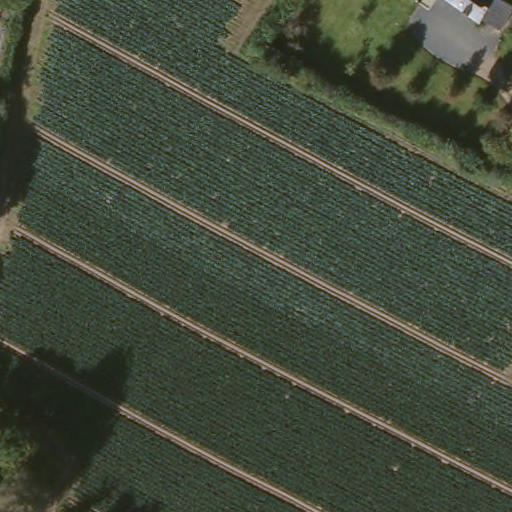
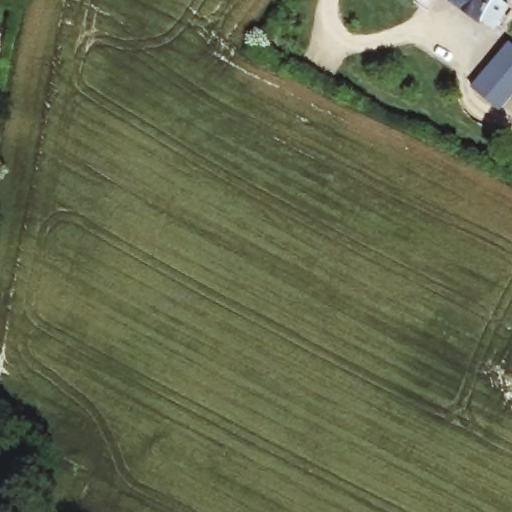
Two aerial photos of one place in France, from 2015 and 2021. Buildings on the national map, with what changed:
unchanged [(503,33),(458,0),(504,0),(512,6),(512,22),(503,33)]
new [(512,43),(512,95),(500,111),(472,88),(508,41),(512,43)]

